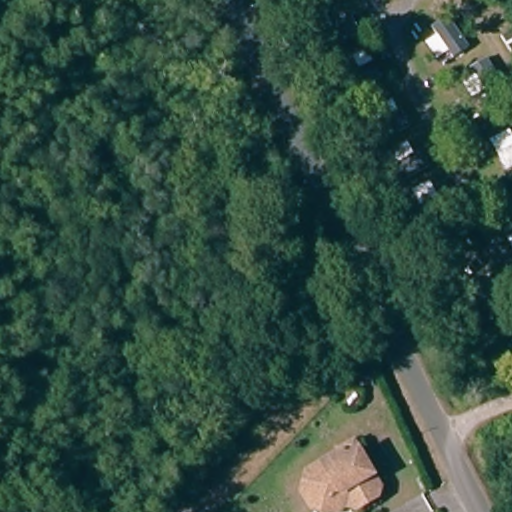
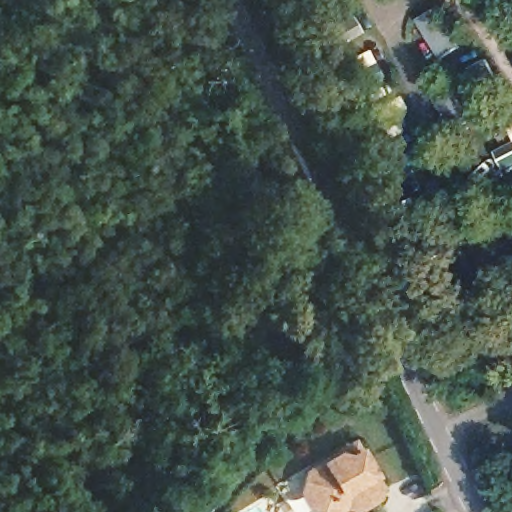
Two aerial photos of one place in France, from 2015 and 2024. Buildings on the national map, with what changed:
unchanged [(372,500),(354,511),(339,502),(333,512),(324,512),(308,508),(299,494),(304,469),(318,461),(348,442),(354,452),(377,489),(372,500)]

